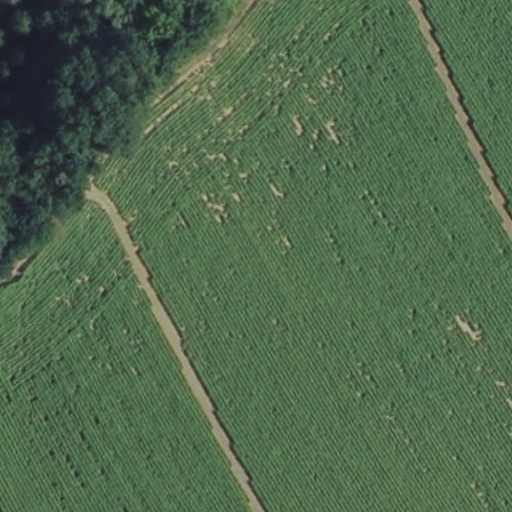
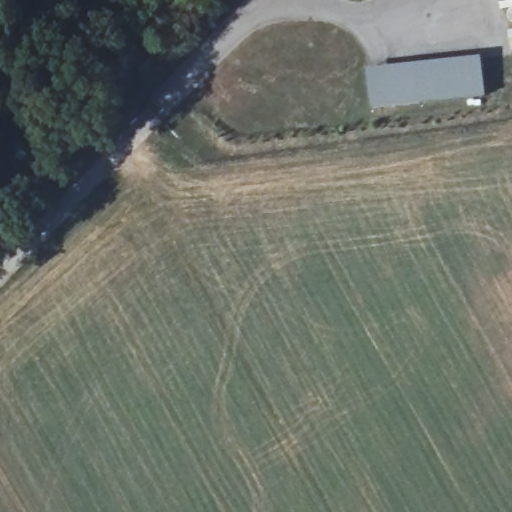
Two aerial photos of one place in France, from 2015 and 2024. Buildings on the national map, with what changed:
new [(490,60),(492,97),(378,105),(375,69),(490,60)]

